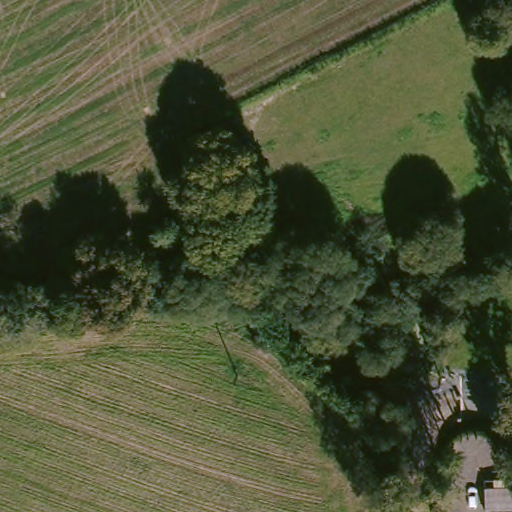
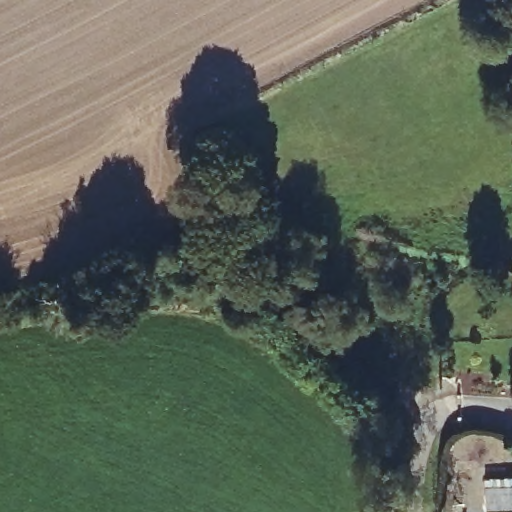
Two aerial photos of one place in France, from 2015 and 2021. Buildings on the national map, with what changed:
unchanged [(257,304),(274,332),(256,342),(240,314),(257,304)]

